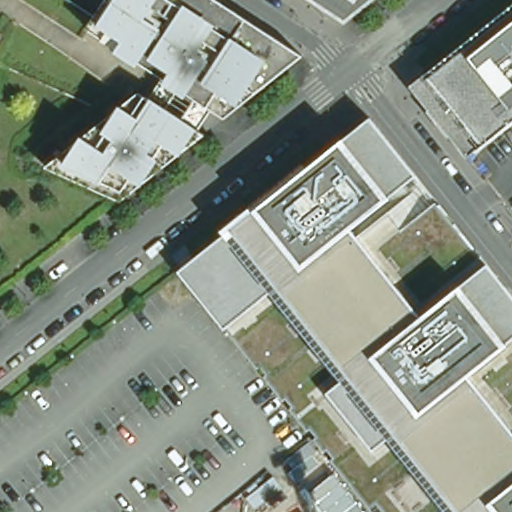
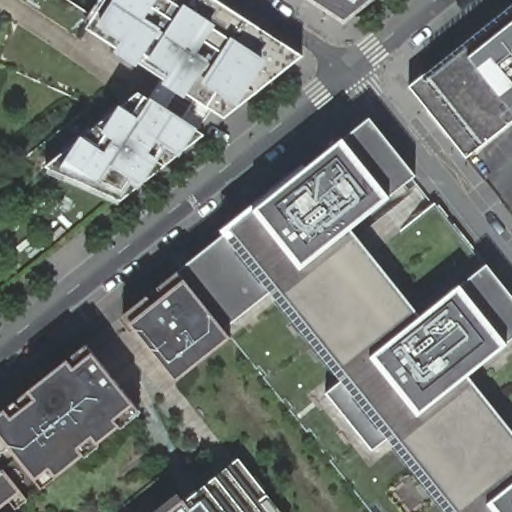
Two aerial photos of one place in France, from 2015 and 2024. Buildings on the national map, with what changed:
unchanged [(225,10),(255,29),(297,56),(273,75),(228,111),(219,117),(194,101),(175,88),(145,68),(120,51),(84,27),(101,0),(211,0),(225,10)]
unchanged [(343,22),(308,0),(372,0),(343,22)]
unchanged [(473,35),(512,4),(512,121),(465,158),(408,86),(473,35)]
unchanged [(78,136),(117,105),(126,98),(133,92),(160,110),(198,135),(175,153),(148,174),(115,200),(40,167),(78,136)]
unchanged [(387,215),(402,233),(436,205),(486,265),(512,296),(512,512),(370,512),(225,330),(178,272),(225,234),(253,211),(343,139),(370,119),(414,176),(420,187),(387,215)]
new [(178,272),(225,330),(230,336),(175,380),(124,315),(178,272)]
new [(137,410),(10,512),(0,512),(0,413),(86,345),(137,410)]
new [(237,457),(281,512),(170,512),(203,486),(237,457)]

